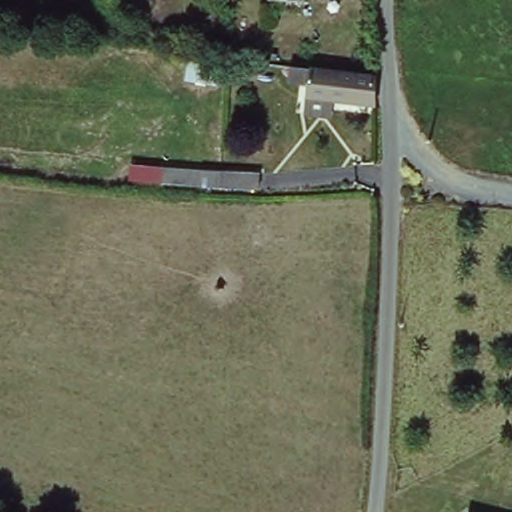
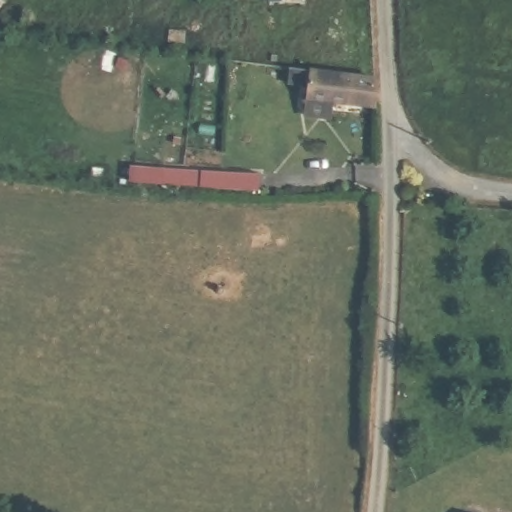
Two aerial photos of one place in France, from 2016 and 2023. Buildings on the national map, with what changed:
unchanged [(269,5),(266,6),(266,0),(298,0),(298,5),(269,5)]
unchanged [(374,81),(371,107),(324,104),(323,120),(299,117),(300,101),(299,101),(300,89),(281,87),(280,74),(374,81)]
unchanged [(260,177),(261,192),(165,190),(164,175),(260,177)]

